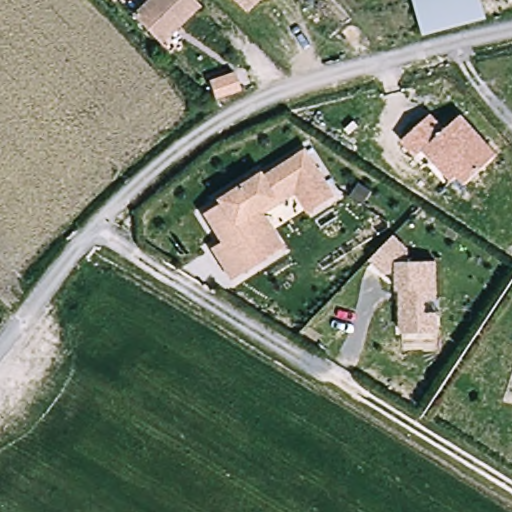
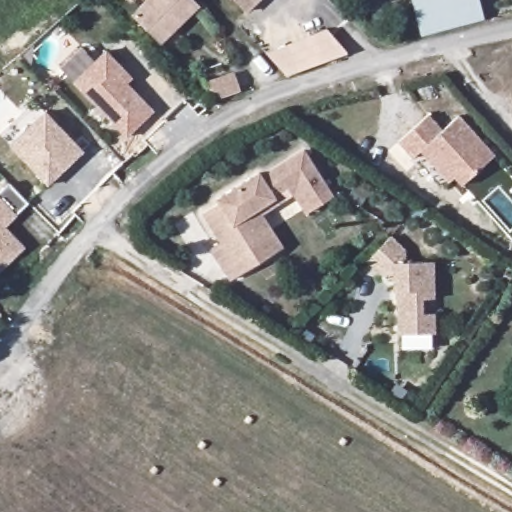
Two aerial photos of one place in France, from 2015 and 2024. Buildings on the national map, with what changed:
unchanged [(129,0),(157,0),(140,18),(126,3),(129,0)]
unchanged [(196,0),(205,9),(168,46),(140,18),(157,0),(196,0)]
unchanged [(233,0),(262,0),(247,15),(233,0)]
unchanged [(418,0),(481,0),(485,15),(425,30),(418,0)]
new [(349,54),(288,77),(268,53),(327,29),(349,54)]
new [(73,82),(107,50),(133,78),(128,84),(155,111),(127,139),(73,82)]
unchanged [(205,83),(229,74),(235,89),(210,97),(205,83)]
new [(46,111),(84,152),(48,186),(10,146),(46,111)]
unchanged [(497,154),(463,184),(455,177),(450,182),(421,150),(414,157),(400,143),(429,114),(443,129),(461,114),(497,154)]
unchanged [(314,211),(302,193),(298,186),(256,214),(258,217),(219,237),(206,215),(221,206),(219,202),(261,174),(264,179),(307,151),(325,181),(335,198),(314,211)]
new [(6,227),(26,248),(0,273),(0,191),(10,183),(29,204),(18,215),(6,227)]
unchanged [(222,264),(214,250),(224,244),(219,237),(258,217),(269,235),(222,264)]
unchanged [(280,253),(233,282),(222,264),(269,235),(280,253)]
unchanged [(398,334),(397,294),(394,294),(393,275),(382,275),(368,262),(392,236),(407,249),(408,262),(436,264),(437,333),(398,334)]

